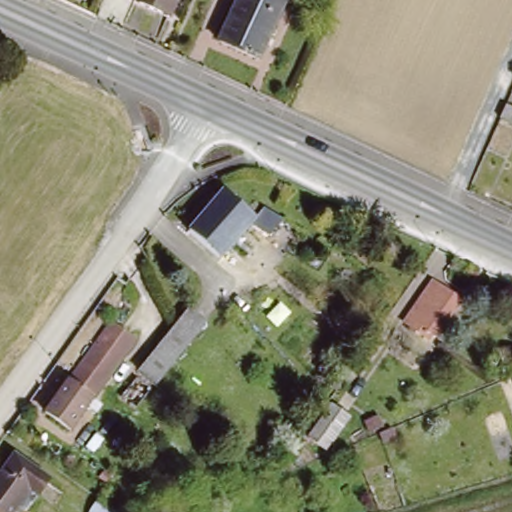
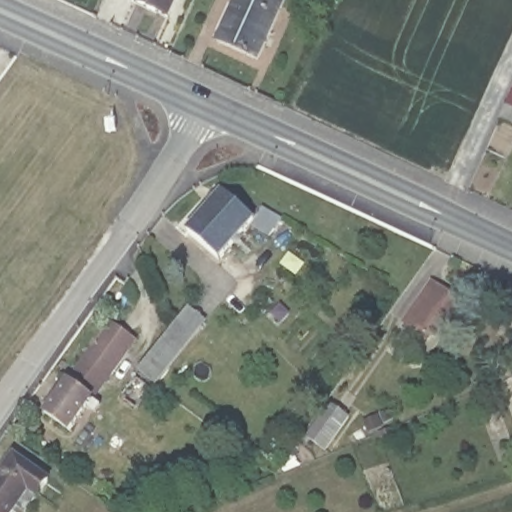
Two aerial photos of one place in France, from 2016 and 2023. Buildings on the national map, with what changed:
unchanged [(136,0),(180,0),(174,16),(136,0)]
unchanged [(216,47),(237,0),(287,0),(259,65),(216,47)]
unchanged [(512,112),(512,129),(496,122),(502,108),(512,112)]
unchanged [(192,235),(222,200),(256,226),(225,262),(192,235)]
unchanged [(286,225),(275,240),(256,226),(268,212),(286,225)]
unchanged [(460,302),(436,335),(431,331),(425,339),(401,322),(431,281),(460,302)]
unchanged [(142,371),(182,318),(193,303),(210,316),(200,328),(157,383),(142,371)]
unchanged [(147,351),(140,361),(130,353),(67,437),(42,417),(111,325),(147,351)]
unchanged [(311,442),(335,408),(355,422),(331,456),(311,442)]
unchanged [(23,510),(13,503),(7,512),(0,512),(0,471),(15,449),(50,473),(23,510)]

